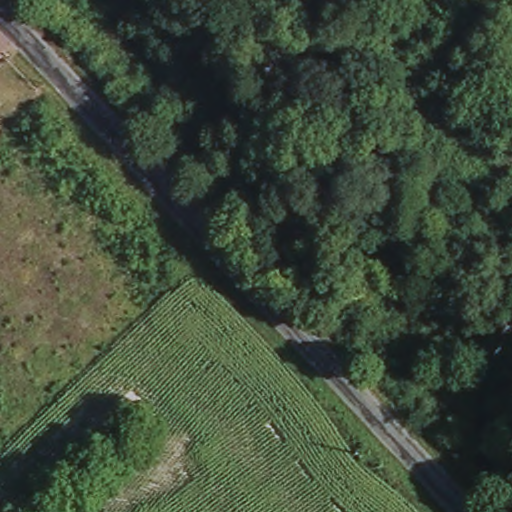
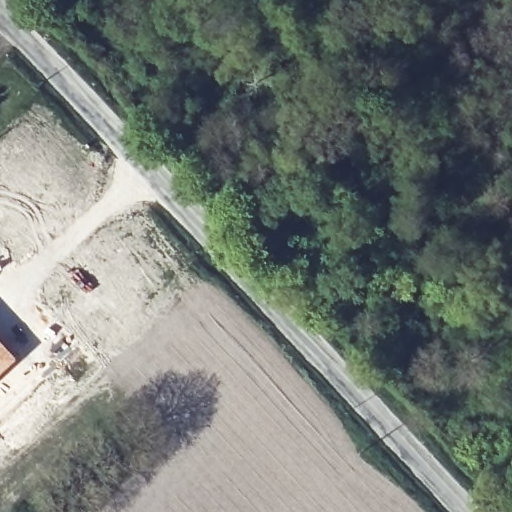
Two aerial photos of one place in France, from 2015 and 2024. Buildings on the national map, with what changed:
new [(16,359),(0,374),(0,341),(16,359)]

